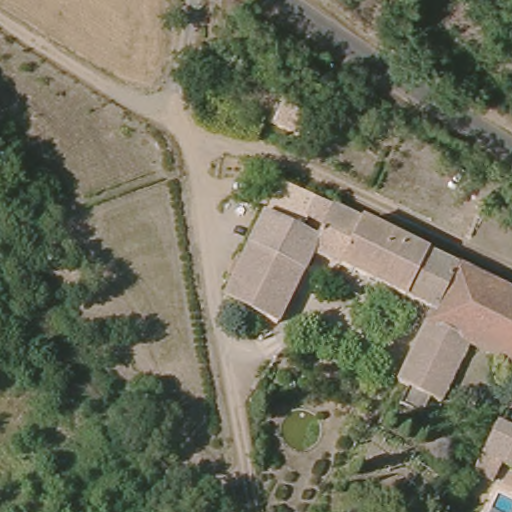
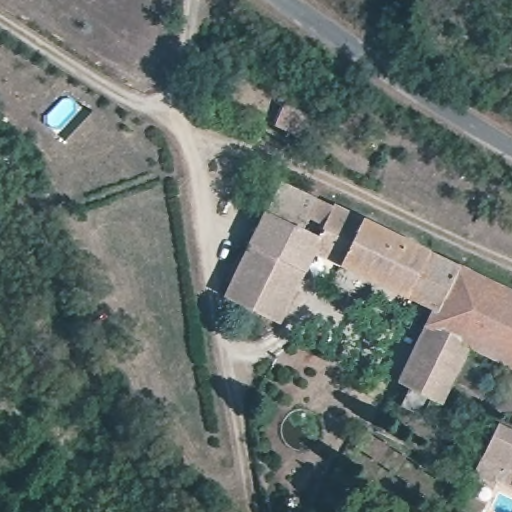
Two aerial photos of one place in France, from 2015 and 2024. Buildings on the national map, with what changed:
unchanged [(280,183),(318,197),(303,229),(265,212),(280,183)]
unchanged [(337,264),(312,252),(318,237),(310,233),(316,220),(325,224),(334,204),(358,218),(337,264)]
unchanged [(310,233),(318,237),(312,252),(302,274),(248,246),(265,212),(303,229),(310,233)]
unchanged [(405,240),(384,287),(337,264),(358,218),(405,240)]
unchanged [(433,311),(384,287),(405,240),(455,265),(433,311)]
unchanged [(275,326),(223,299),(248,246),(302,274),(275,326)]
unchanged [(480,352),(467,377),(457,372),(467,350),(425,328),(433,311),(455,265),(512,292),(512,358),(508,366),(480,352)]
unchanged [(393,413),(407,386),(397,381),(423,332),(425,328),(467,350),(457,372),(445,394),(440,402),(428,396),(414,423),(393,413)]
unchanged [(512,358),(512,368),(508,366),(512,358)]
unchanged [(485,444),(493,423),(512,432),(512,468),(480,455),(485,444)]

